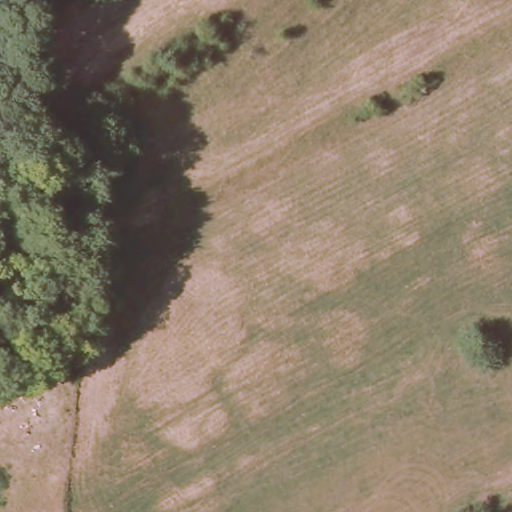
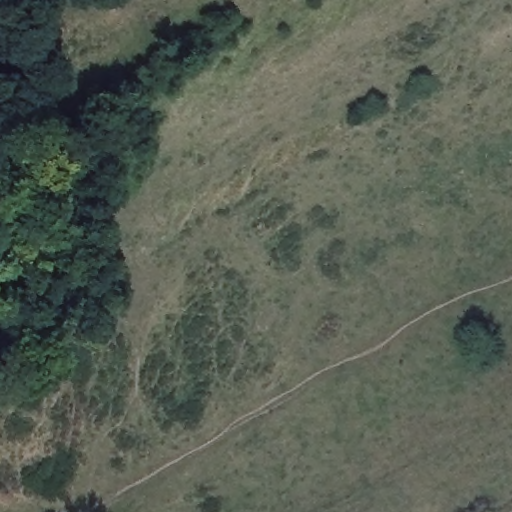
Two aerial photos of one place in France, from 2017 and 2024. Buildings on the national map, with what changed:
unchanged [(55,336),(82,382),(57,396),(30,349),(55,336)]

